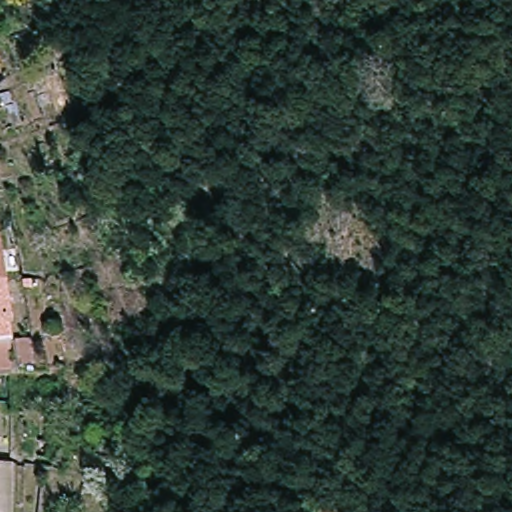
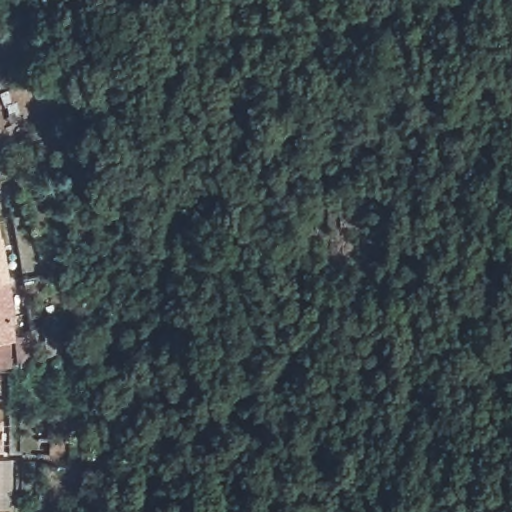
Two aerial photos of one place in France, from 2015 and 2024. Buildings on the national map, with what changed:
unchanged [(6,237),(12,277),(0,279),(0,222),(3,238),(6,237)]
unchanged [(19,315),(15,316),(18,334),(0,337),(0,279),(12,277),(19,315)]

